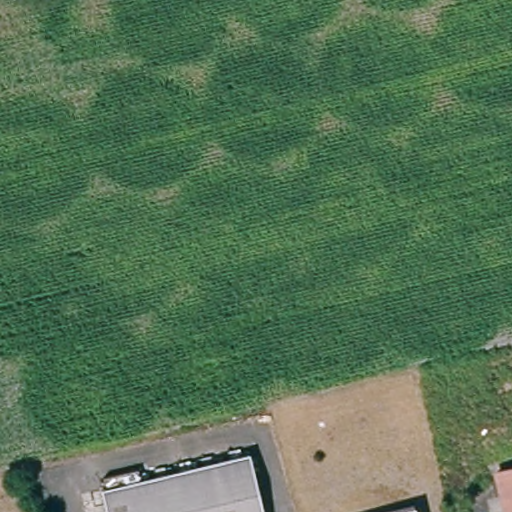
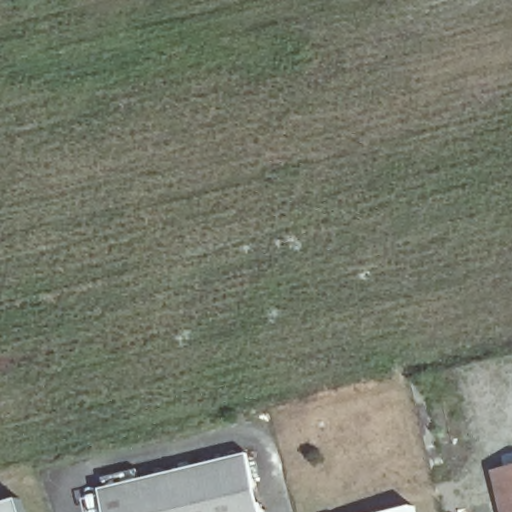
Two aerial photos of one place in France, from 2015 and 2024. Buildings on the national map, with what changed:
unchanged [(105,494),(103,489),(107,488),(104,472),(137,462),(142,479),(249,451),(265,512),(109,512),(109,511),(105,494)]
unchanged [(512,500),(507,497),(501,472),(512,470),(512,500)]
new [(0,512),(0,505),(21,498),(25,512),(0,512)]
unchanged [(416,512),(388,512),(415,505),(416,512)]

